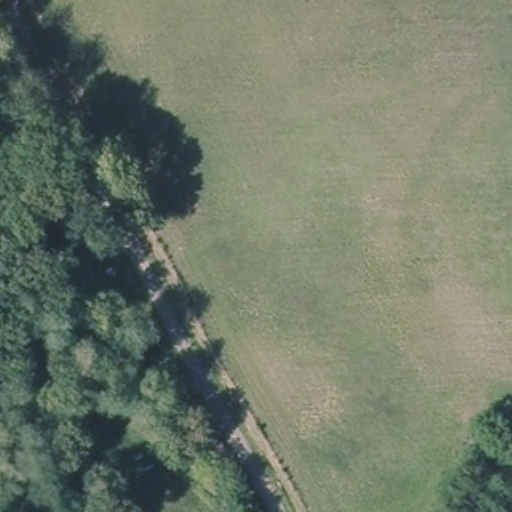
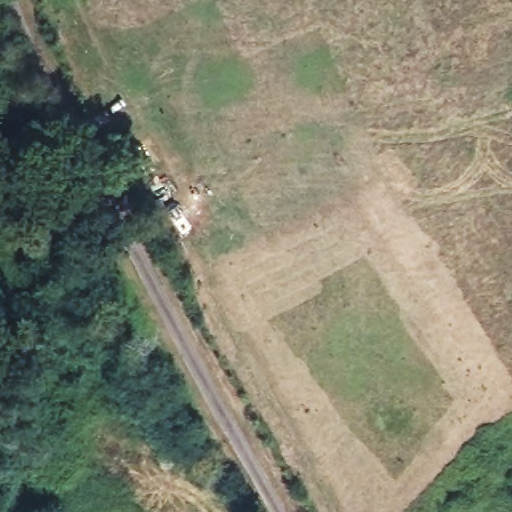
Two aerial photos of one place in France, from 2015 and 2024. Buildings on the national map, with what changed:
[]

